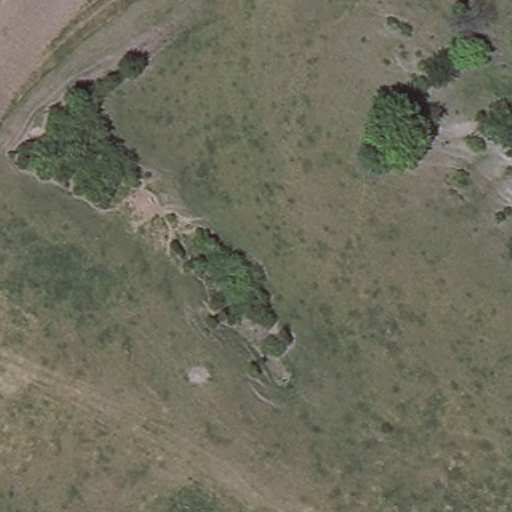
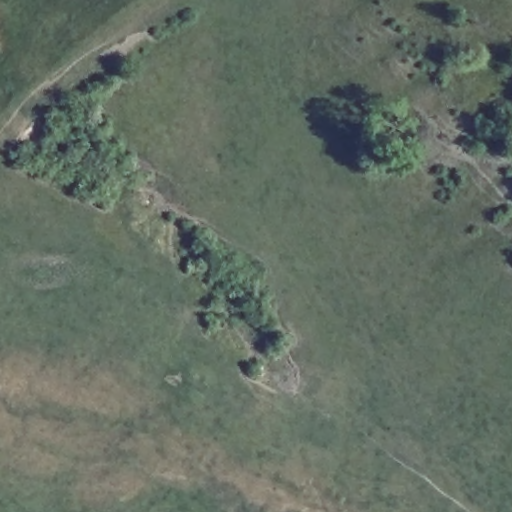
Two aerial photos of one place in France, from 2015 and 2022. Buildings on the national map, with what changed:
[]

